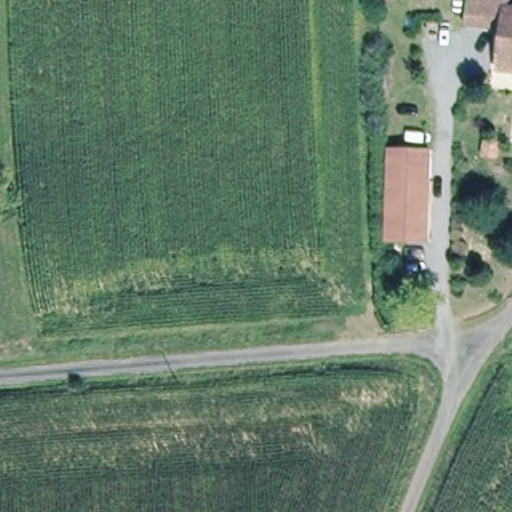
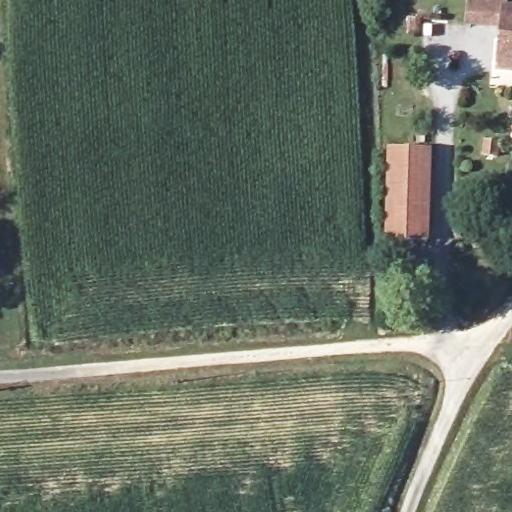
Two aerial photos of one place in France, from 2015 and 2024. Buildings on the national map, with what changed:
unchanged [(502,41),(505,27),(478,26),(468,25),(469,0),(504,0),(505,9),(512,10),(512,69),(501,68),(502,41)]
unchanged [(425,241),(385,242),(382,150),(424,149),(425,241)]

